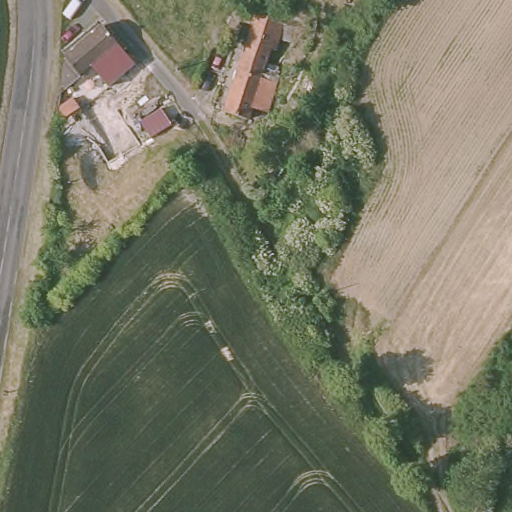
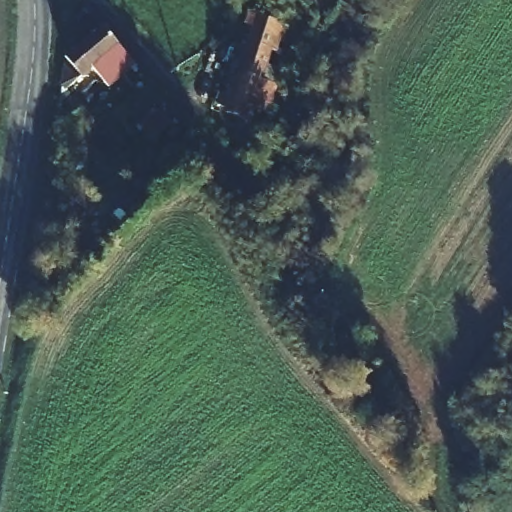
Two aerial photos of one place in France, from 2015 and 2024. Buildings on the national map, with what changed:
unchanged [(102,23),(104,24),(51,70),(53,43),(93,10),(102,23)]
unchanged [(97,74),(93,60),(111,40),(119,52),(97,74)]
unchanged [(252,115),(225,102),(257,40),(282,52),(252,115)]
unchanged [(80,89),(45,120),(49,92),(70,79),(80,89)]

